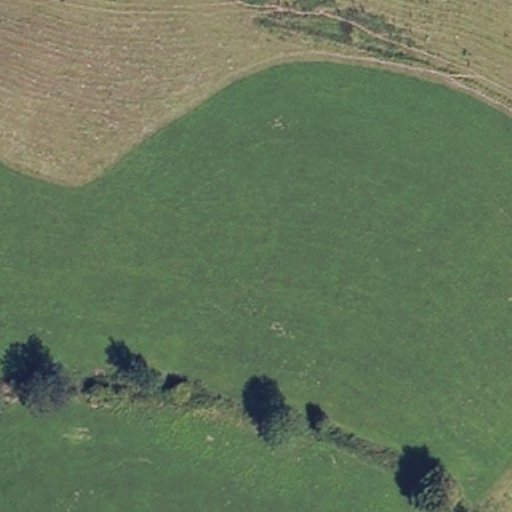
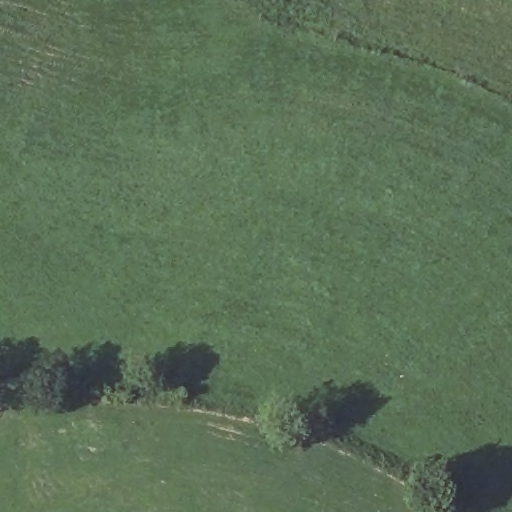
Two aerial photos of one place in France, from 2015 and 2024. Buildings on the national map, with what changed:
[]

